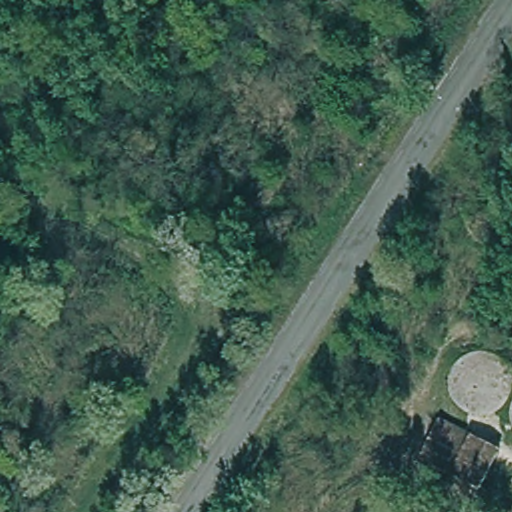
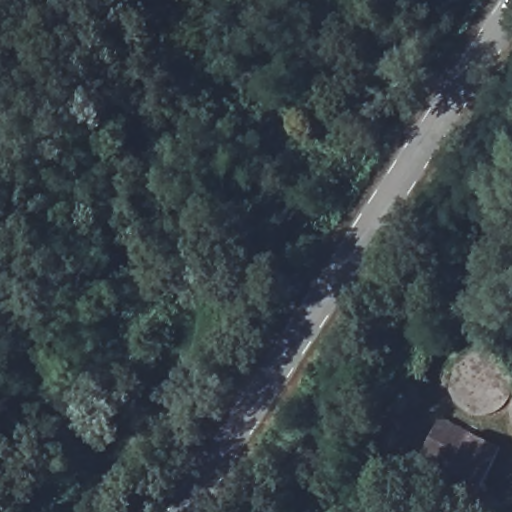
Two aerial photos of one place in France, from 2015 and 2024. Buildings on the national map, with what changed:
unchanged [(503,453),(483,491),(423,460),(442,420),(503,453)]

